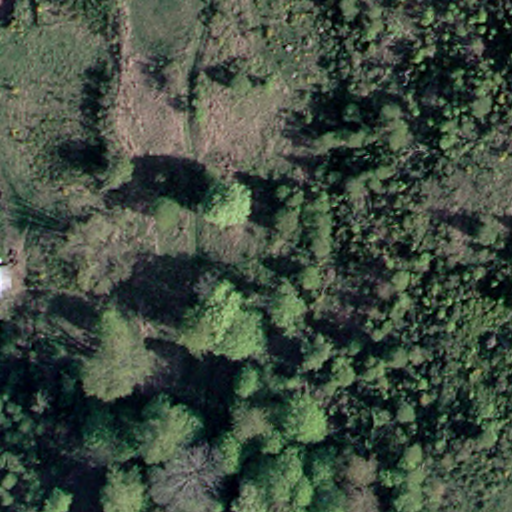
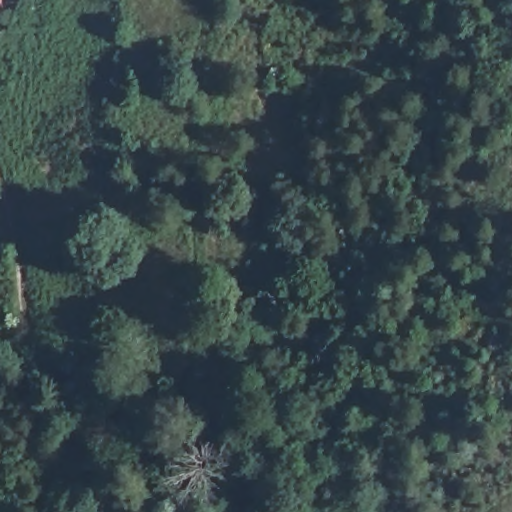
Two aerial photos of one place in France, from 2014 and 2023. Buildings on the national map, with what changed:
unchanged [(0,10),(0,0),(6,0),(4,10),(0,10)]
unchanged [(14,303),(0,304),(0,261),(12,259),(14,303)]

